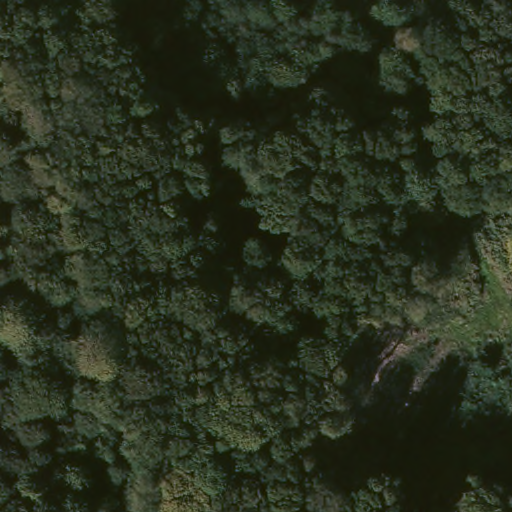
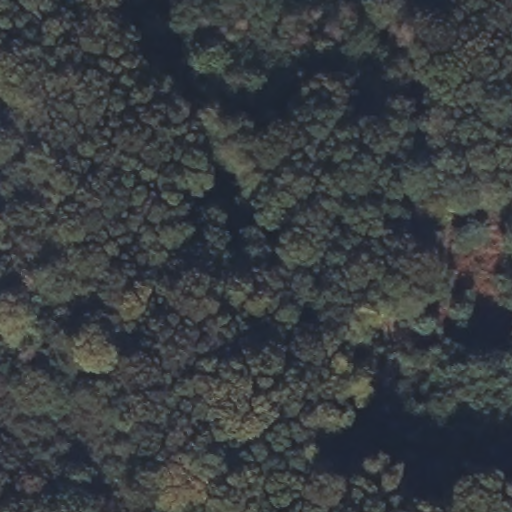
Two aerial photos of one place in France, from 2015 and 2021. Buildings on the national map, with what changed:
unchanged [(89,24),(69,7),(74,0),(108,0),(89,24)]

